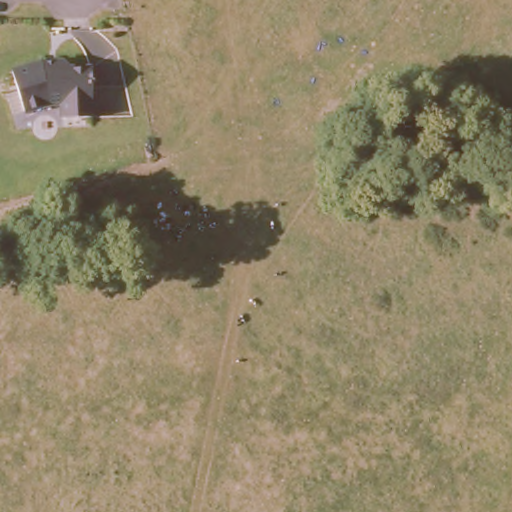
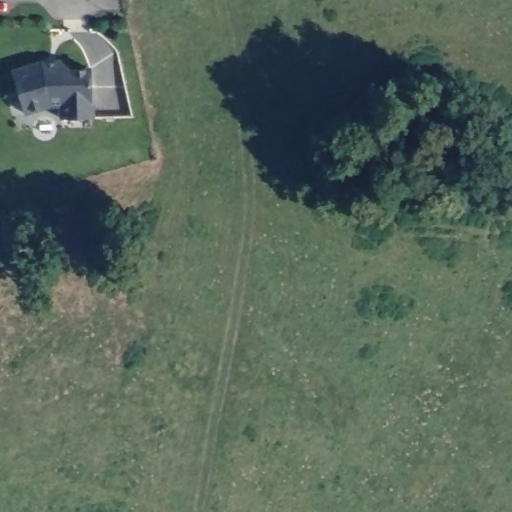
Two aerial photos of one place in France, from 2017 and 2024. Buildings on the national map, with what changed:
unchanged [(94,120),(66,124),(64,107),(53,107),(27,115),(11,72),(43,60),(66,59),(71,69),(94,69),(94,120)]

